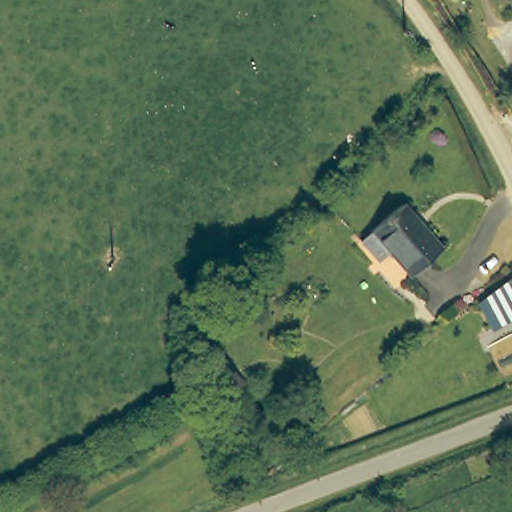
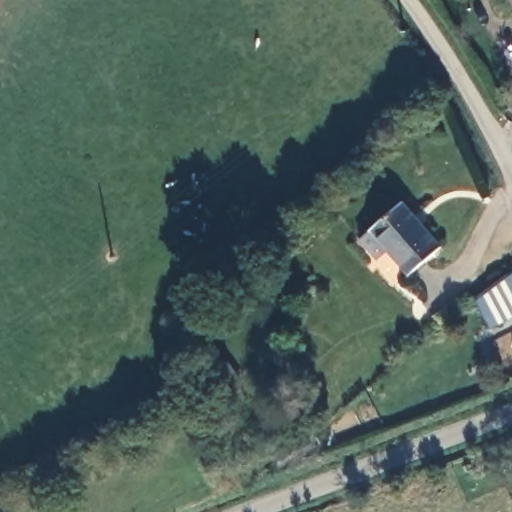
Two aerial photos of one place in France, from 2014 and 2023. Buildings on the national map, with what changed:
unchanged [(379,234),(410,205),(450,248),(418,278),(379,234)]
unchanged [(491,330),(476,303),(512,276),(512,319),(491,330)]

